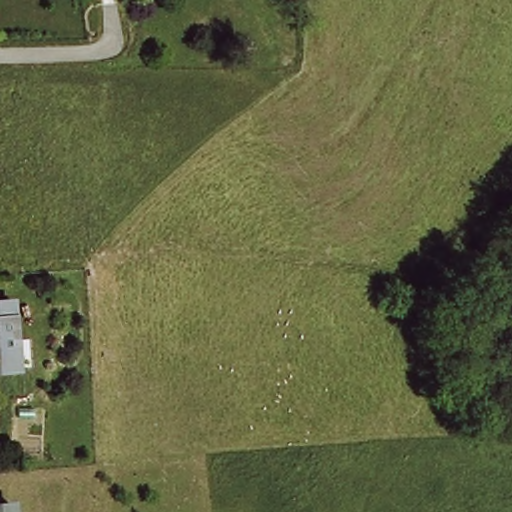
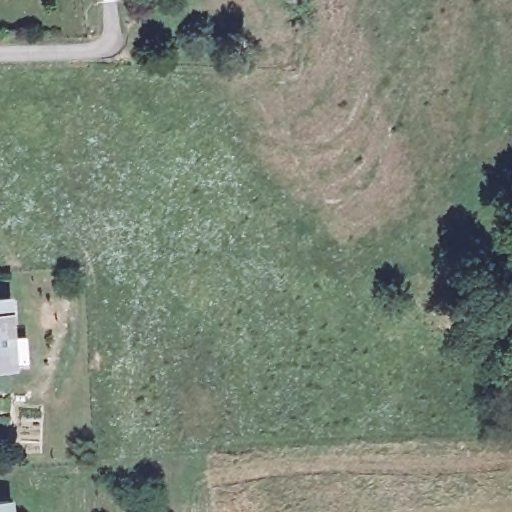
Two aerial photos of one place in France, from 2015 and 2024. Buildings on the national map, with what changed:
unchanged [(23,361),(7,362),(0,363),(0,296),(3,295),(5,332),(20,331),(23,361)]
unchanged [(12,505),(12,512),(0,512),(0,505),(12,505)]

